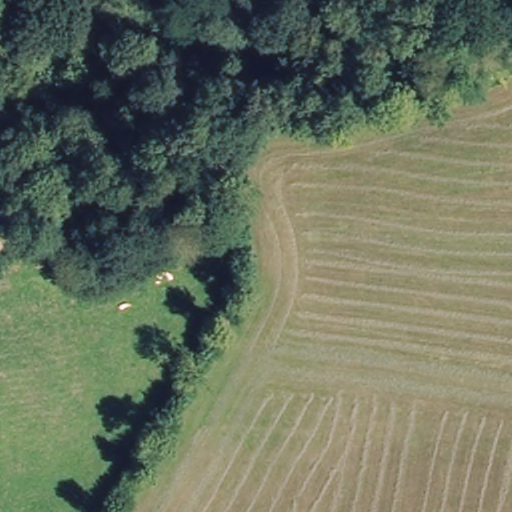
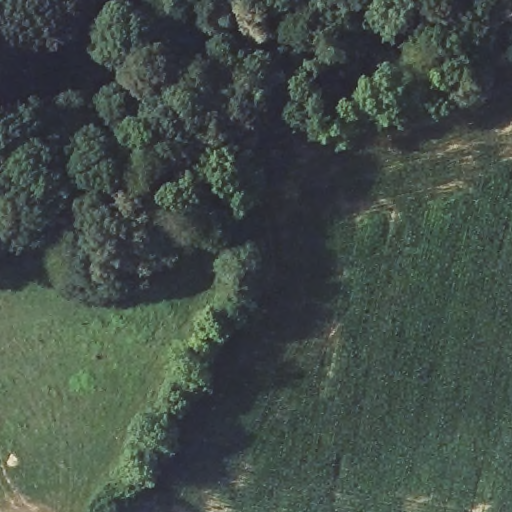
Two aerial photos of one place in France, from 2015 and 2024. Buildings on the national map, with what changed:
[]

